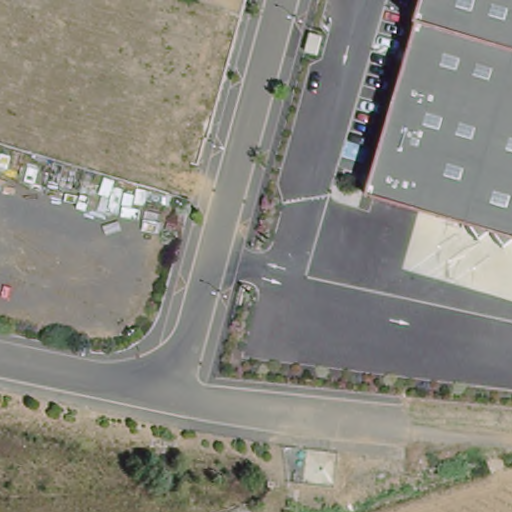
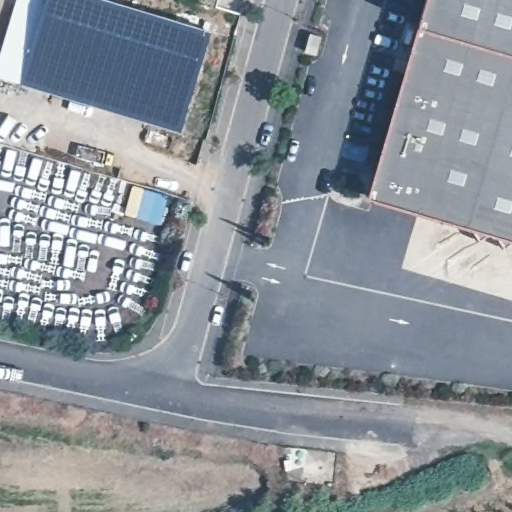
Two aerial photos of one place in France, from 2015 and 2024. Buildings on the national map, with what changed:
new [(138,5),(211,28),(198,77),(181,132),(73,101),(0,77),(0,48),(14,0),(123,0),(138,5)]
unchanged [(365,195),(424,0),(512,0),(512,242),(365,195)]
new [(131,185),(166,195),(167,203),(162,223),(124,214),(131,185)]

